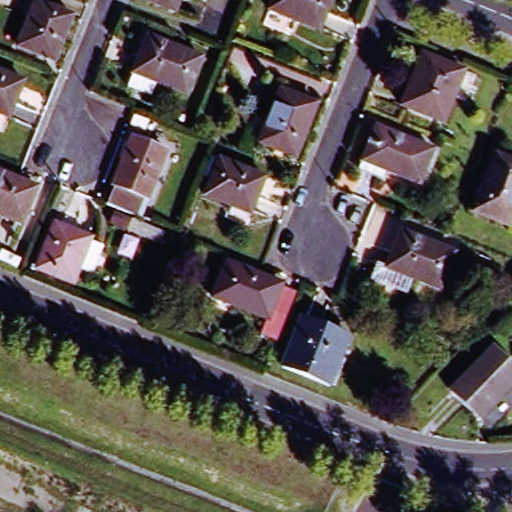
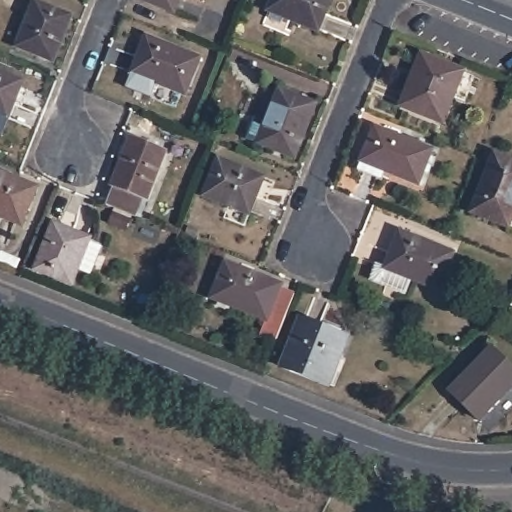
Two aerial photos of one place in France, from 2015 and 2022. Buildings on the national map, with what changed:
unchanged [(144,0),(179,0),(174,13),(144,0)]
unchanged [(265,10),(269,0),(327,0),(315,30),(265,10)]
unchanged [(19,51),(37,6),(72,21),(55,66),(19,51)]
unchanged [(127,88),(133,73),(147,36),(201,57),(187,94),(160,84),(155,99),(127,88)]
unchanged [(401,109),(421,58),(452,70),(432,121),(401,109)]
unchanged [(20,81),(5,118),(0,116),(0,74),(20,81)]
unchanged [(260,148),(281,95),(317,109),(297,162),(260,148)]
unchanged [(360,169),(362,161),(377,127),(434,150),(420,184),(384,169),(381,178),(360,169)]
unchanged [(110,191),(107,189),(127,141),(162,155),(144,204),(137,201),(130,220),(102,209),(110,191)]
unchanged [(200,196),(216,159),(260,177),(246,214),(200,196)]
unchanged [(492,161),(512,169),(512,216),(506,232),(469,217),(492,161)]
unchanged [(33,193),(18,230),(0,222),(0,179),(33,193)]
unchanged [(86,275),(74,270),(69,284),(31,269),(50,224),(87,239),(85,242),(97,247),(86,275)]
unchanged [(369,280),(375,262),(388,267),(402,232),(455,253),(441,289),(410,277),(404,293),(369,280)]
unchanged [(262,335),(249,329),(254,315),(198,293),(212,258),(269,280),(267,283),(281,289),(262,335)]
unchanged [(277,366),(297,319),(345,338),(325,386),(277,366)]
unchanged [(494,352),(512,370),(512,394),(481,425),(451,395),(494,352)]

